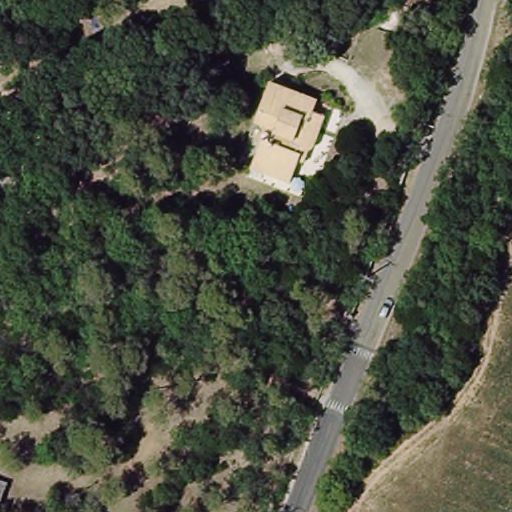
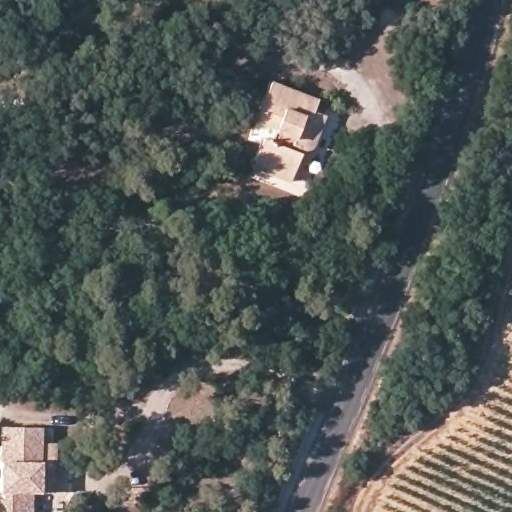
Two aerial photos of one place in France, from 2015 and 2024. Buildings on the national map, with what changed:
unchanged [(253,161),(260,142),(269,145),(275,132),(254,124),(269,86),(311,105),(311,115),(321,119),(308,155),(300,152),(289,186),(271,179),(250,171),(253,161)]
new [(40,443),(54,443),(53,492),(38,492),(30,491),(30,512),(0,512),(0,460),(0,427),(40,427),(40,443)]

